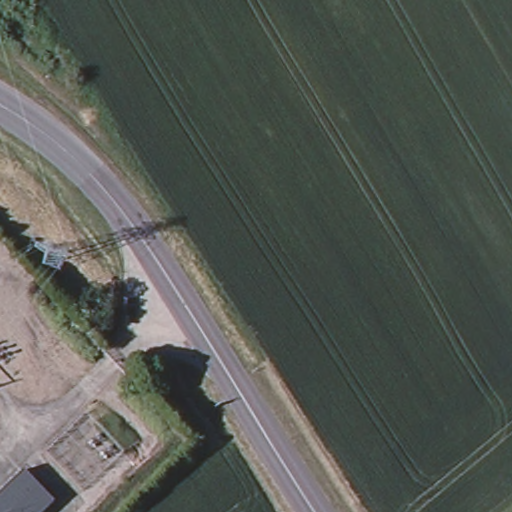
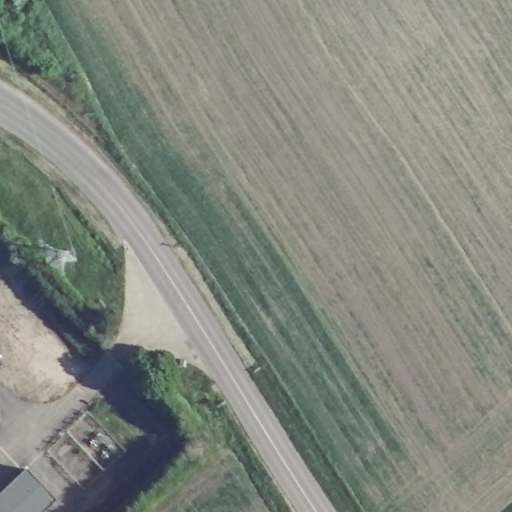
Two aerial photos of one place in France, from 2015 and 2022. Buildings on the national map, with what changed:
unchanged [(0,512),(0,487),(24,464),(55,496),(39,512),(0,512)]

